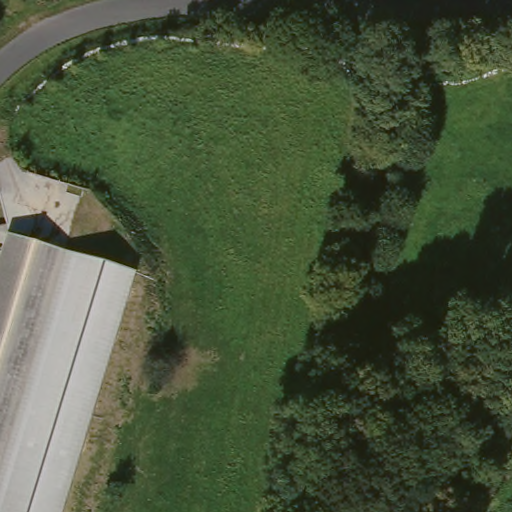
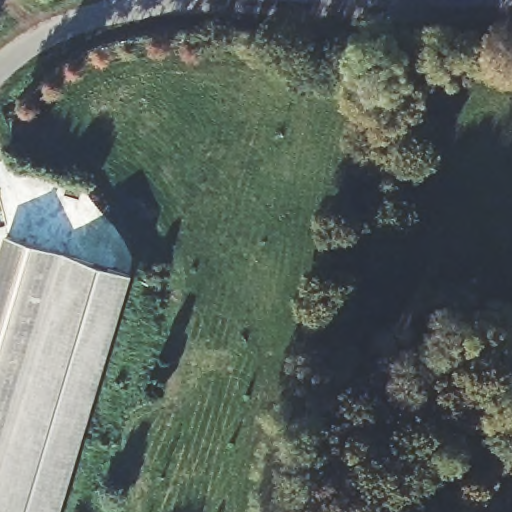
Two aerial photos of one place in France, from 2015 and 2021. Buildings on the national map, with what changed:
unchanged [(66,251),(0,473),(0,256),(8,230),(66,251)]
unchanged [(61,512),(0,512),(0,473),(66,251),(133,273),(61,512)]

